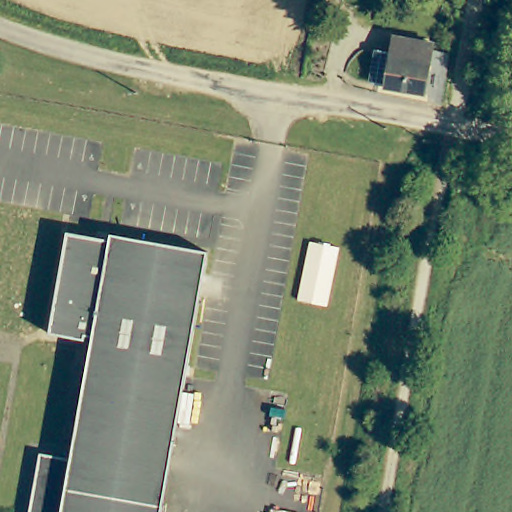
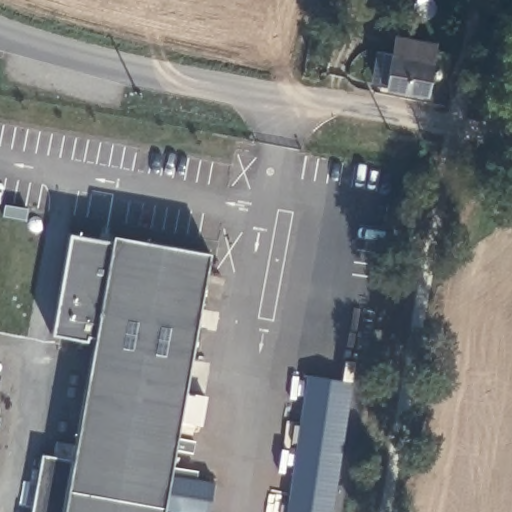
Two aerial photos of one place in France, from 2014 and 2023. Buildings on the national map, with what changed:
unchanged [(436,45),(428,90),(375,79),(382,48),(393,50),(396,37),(436,45)]
unchanged [(78,235),(145,247),(147,240),(204,250),(161,512),(41,512),(50,457),(79,462),(99,345),(59,337),(78,235)]
new [(286,512),(304,375),(351,382),(333,512),(286,512)]
new [(31,512),(41,456),(50,457),(41,512),(31,512)]
new [(161,512),(167,475),(212,483),(208,512),(161,512)]

